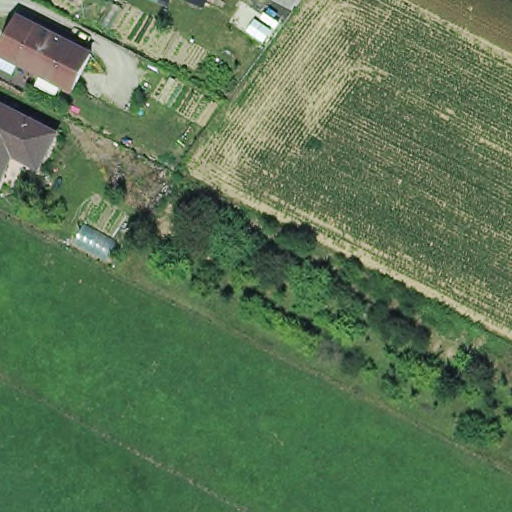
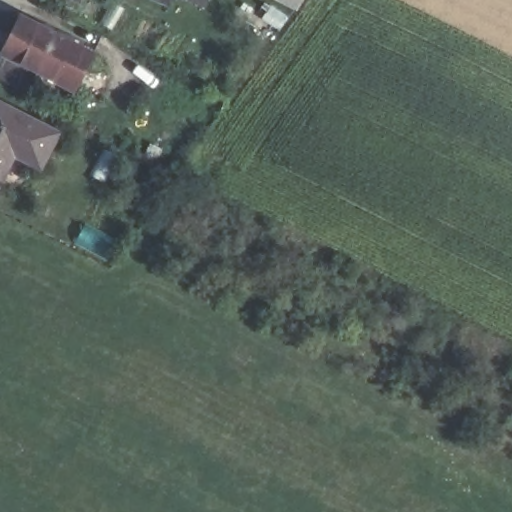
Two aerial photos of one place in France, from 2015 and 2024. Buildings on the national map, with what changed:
unchanged [(159,0),(170,0),(168,4),(159,0)]
unchanged [(195,0),(221,0),(217,9),(195,0)]
unchanged [(278,0),(300,0),(294,9),(278,0)]
unchanged [(1,50),(18,13),(43,25),(45,30),(65,40),(70,39),(93,50),(75,87),(1,50)]
unchanged [(7,160),(15,164),(5,182),(0,179),(0,99),(62,130),(47,163),(15,148),(7,160)]

